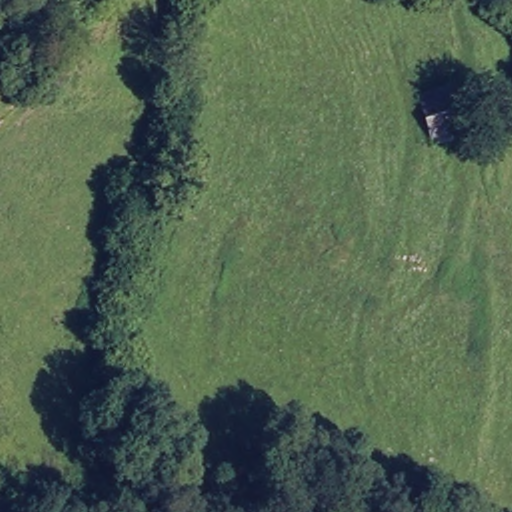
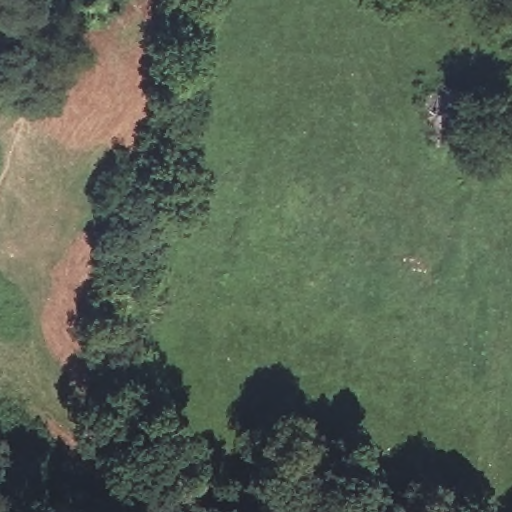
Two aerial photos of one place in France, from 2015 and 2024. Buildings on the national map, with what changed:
unchanged [(51,0),(58,14),(41,20),(37,15),(21,26),(7,0),(51,0)]
unchanged [(438,149),(423,100),(458,92),(472,139),(438,149)]

